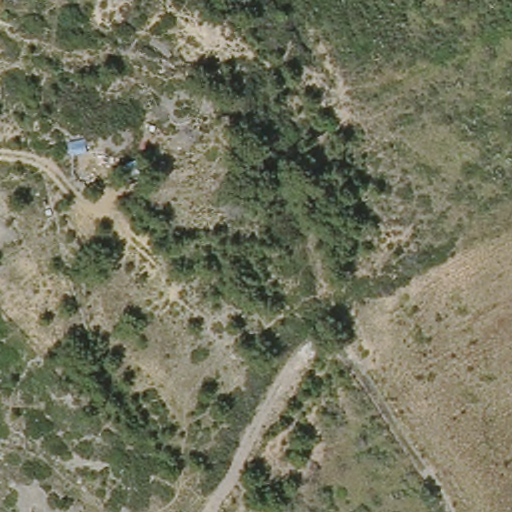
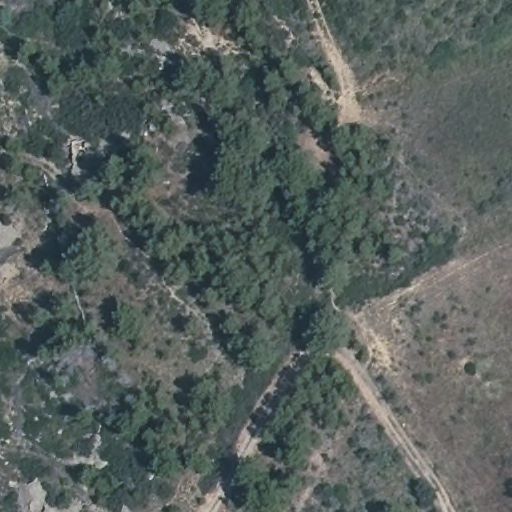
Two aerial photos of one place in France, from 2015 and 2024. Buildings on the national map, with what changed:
unchanged [(84,178),(72,179),(72,148),(92,149),(84,178)]

